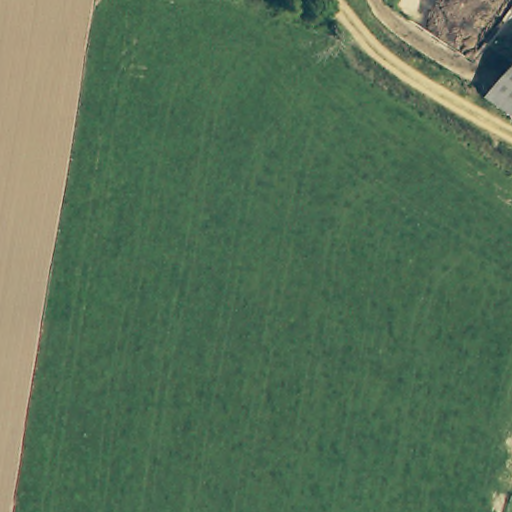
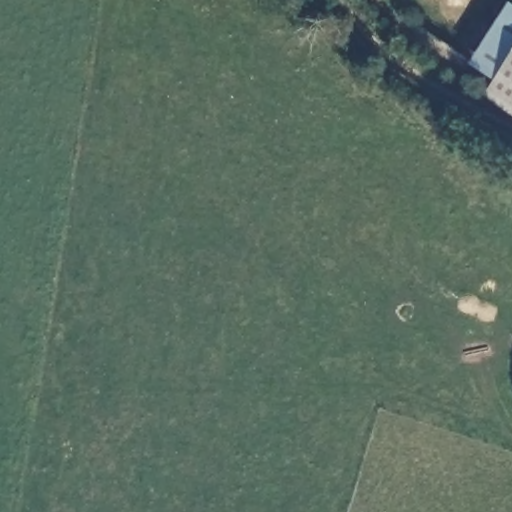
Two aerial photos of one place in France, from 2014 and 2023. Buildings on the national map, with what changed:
new [(510,2),(512,4),(512,60),(498,81),(469,65),(510,2)]
unchanged [(512,60),(512,114),(487,98),(512,60)]

